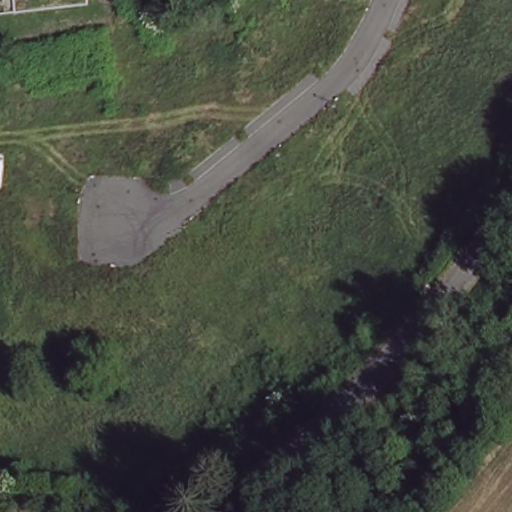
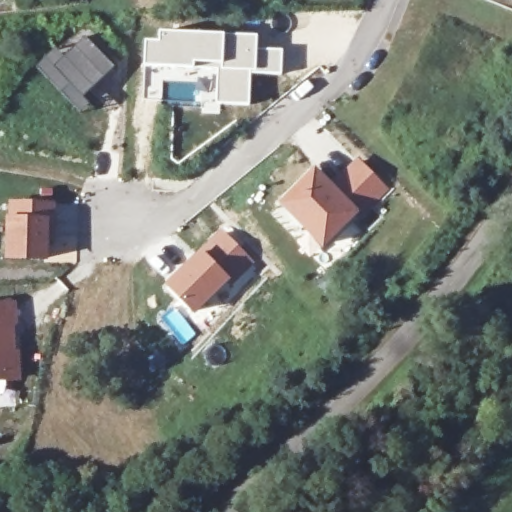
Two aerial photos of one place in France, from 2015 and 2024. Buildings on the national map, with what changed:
new [(255,49),(281,50),(281,74),(250,72),(248,105),(220,105),(222,63),(175,60),(175,67),(145,66),(145,41),(158,41),(159,31),(255,35),(255,49)]
new [(73,105),(36,66),(54,49),(62,57),(84,36),(113,65),(73,105)]
new [(356,156),(390,189),(363,215),(361,212),(331,182),(356,156)]
new [(315,167),(331,182),(361,212),(322,250),(278,205),(315,167)]
new [(55,219),(47,218),(46,260),(5,260),(7,217),(9,200),(55,202),(55,219)]
new [(230,286),(225,281),(192,314),(164,285),(202,248),(221,230),(253,261),(230,286)]
new [(15,297),(21,380),(5,381),(5,395),(0,395),(0,299),(15,297)]

